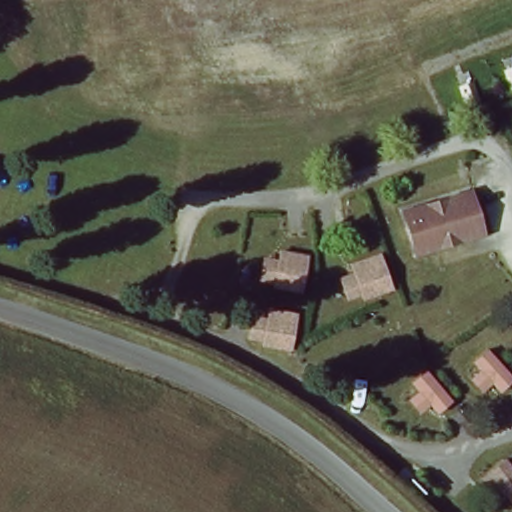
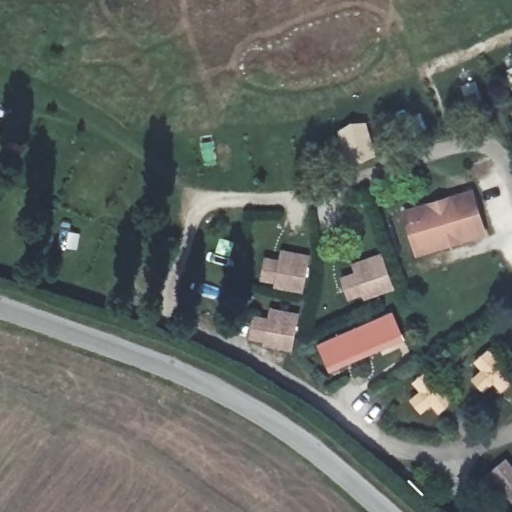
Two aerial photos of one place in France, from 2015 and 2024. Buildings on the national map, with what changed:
unchanged [(490,235),(420,257),(407,210),(474,191),(490,235)]
unchanged [(262,283),(266,256),(278,257),(280,248),(314,253),(303,290),(262,283)]
unchanged [(368,303),(362,296),(351,300),(341,274),(353,271),(350,261),(382,249),(398,291),(368,303)]
unchanged [(249,340),(253,313),(268,316),(269,304),(302,309),(297,347),(249,340)]
demolished [(398,361),(391,345),(381,349),(374,331),(384,327),(383,317),(402,308),(418,354),(398,361)]
new [(394,312),(404,338),(329,372),(317,343),(394,312)]
unchanged [(505,392),(497,383),(485,394),(473,381),(481,370),(474,358),(491,347),(512,371),(512,384),(505,392)]
unchanged [(443,417),(433,406),(423,413),(409,399),(417,392),(411,381),(426,368),(460,405),(443,417)]
unchanged [(508,496),(500,502),(481,477),(508,455),(512,461),(512,501),(508,496)]

